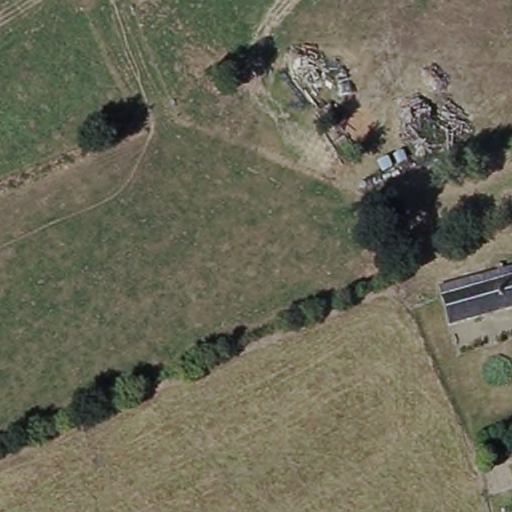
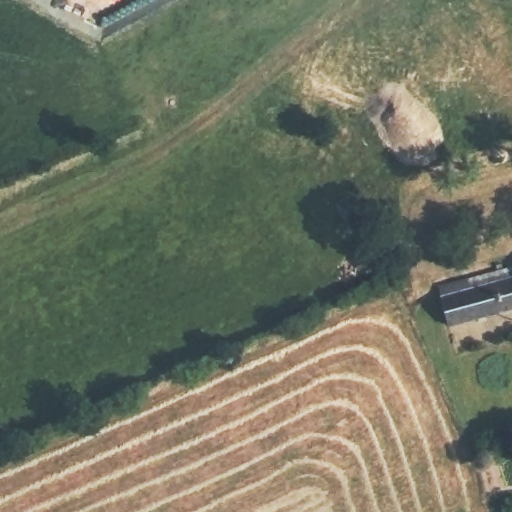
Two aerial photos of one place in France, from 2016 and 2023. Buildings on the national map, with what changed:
unchanged [(444,287),(512,269),(512,309),(455,325),(444,287)]

